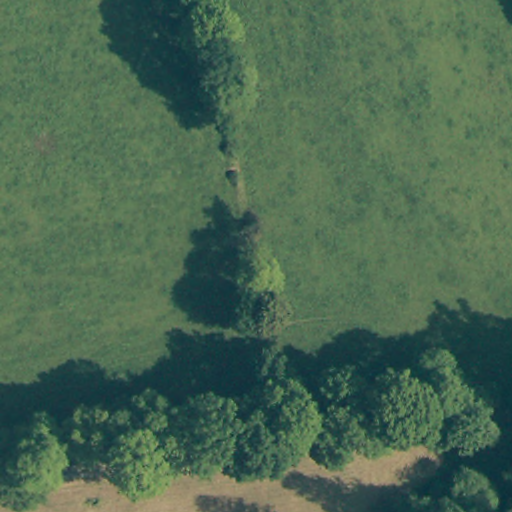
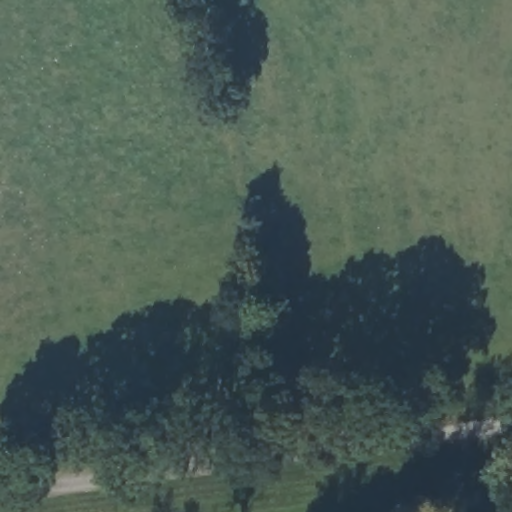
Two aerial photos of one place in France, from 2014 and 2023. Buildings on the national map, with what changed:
[]

